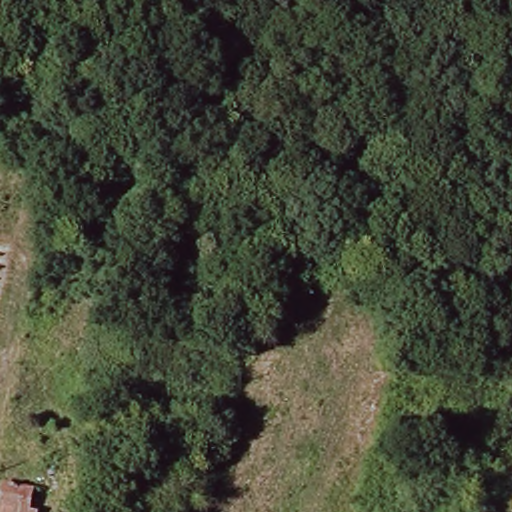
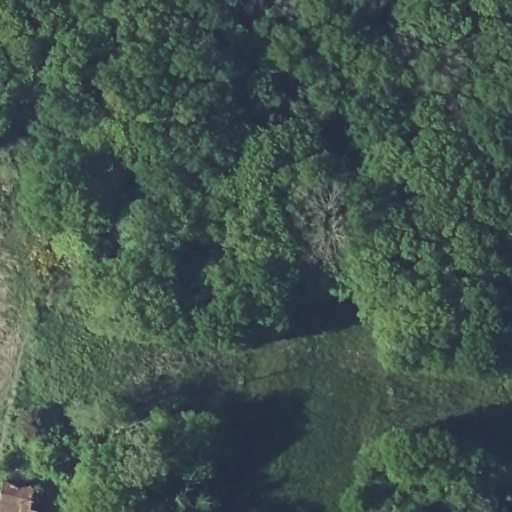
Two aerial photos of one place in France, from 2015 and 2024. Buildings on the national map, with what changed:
unchanged [(27,487),(26,510),(40,512),(0,512),(0,483),(27,487)]

